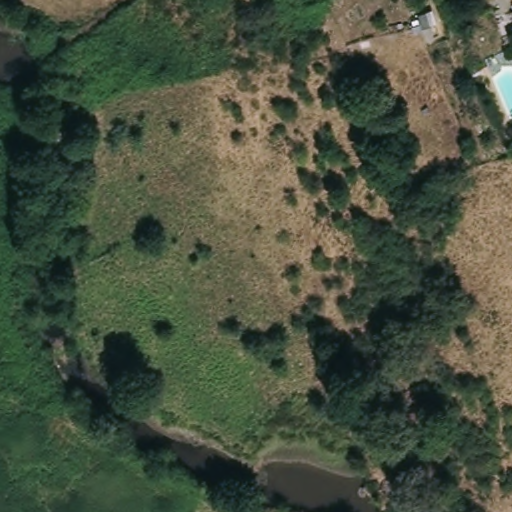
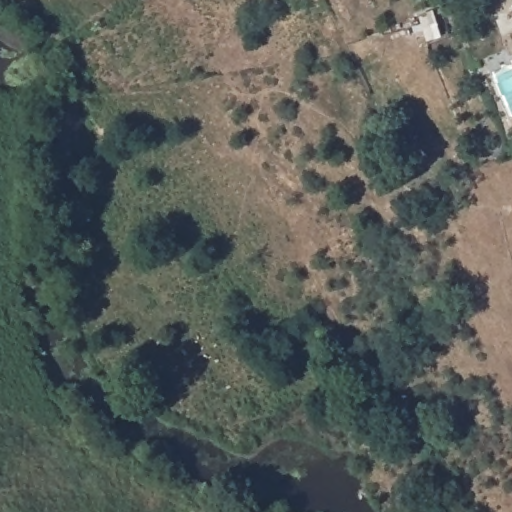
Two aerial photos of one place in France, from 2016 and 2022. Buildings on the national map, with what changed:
[]

